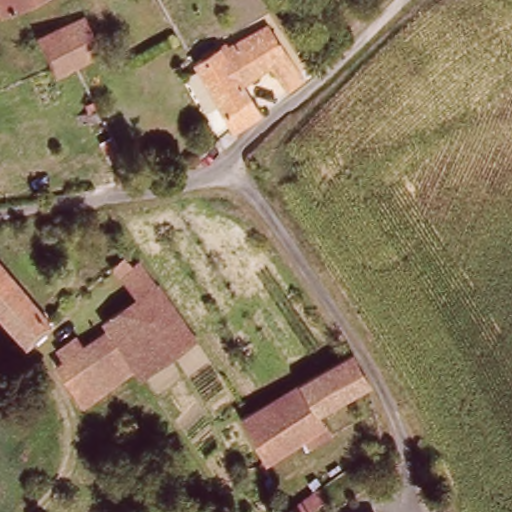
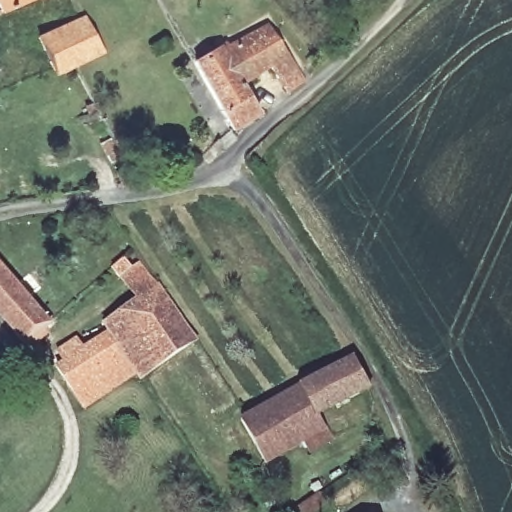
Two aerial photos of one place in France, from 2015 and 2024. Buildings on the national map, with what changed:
unchanged [(18,0),(0,9),(0,0),(18,0)]
unchanged [(40,36),(86,16),(103,54),(55,73),(40,36)]
unchanged [(223,44),(262,18),(294,65),(300,73),(282,86),(262,59),(232,80),(252,108),(227,126),(189,60),(217,38),(223,44)]
unchanged [(124,183),(117,165),(125,163),(134,179),(124,183)]
unchanged [(75,345),(107,323),(99,313),(131,292),(109,260),(120,253),(127,262),(138,255),(153,277),(191,333),(136,369),(129,366),(78,404),(50,361),(59,356),(49,342),(66,331),(75,345)]
unchanged [(50,318),(22,338),(13,325),(0,309),(0,258),(50,318)]
unchanged [(326,424),(262,458),(239,414),(355,350),(373,383),(320,412),(326,424)]

